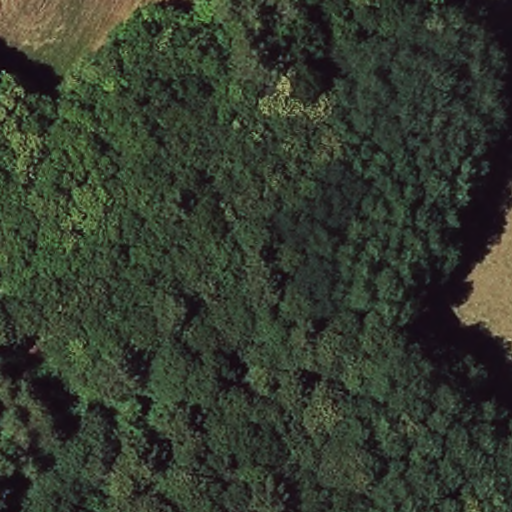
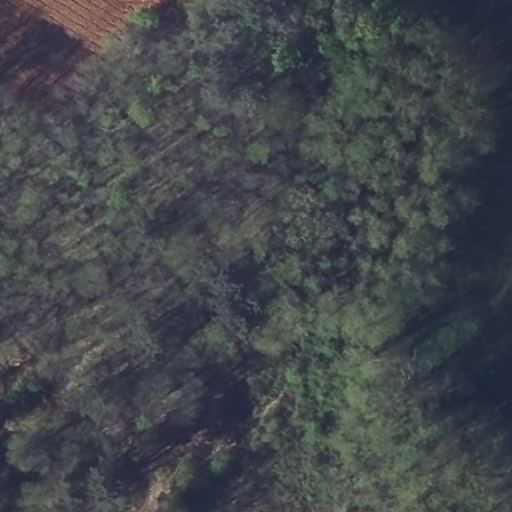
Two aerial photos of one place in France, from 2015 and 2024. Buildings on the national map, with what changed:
[]

